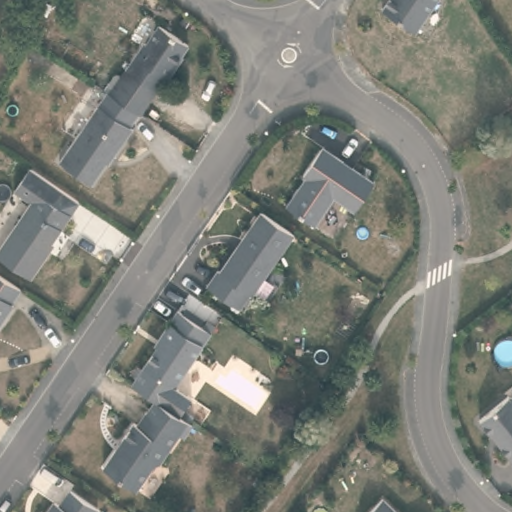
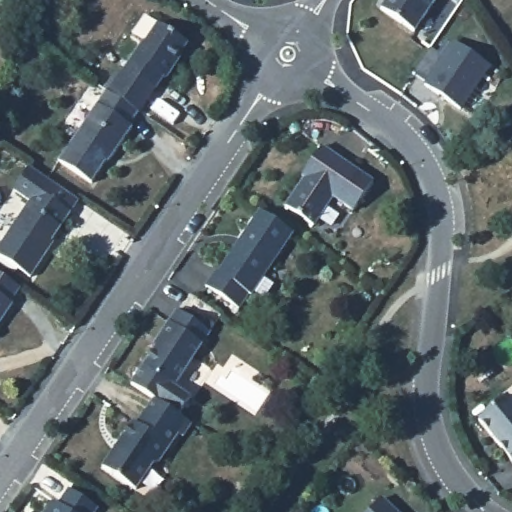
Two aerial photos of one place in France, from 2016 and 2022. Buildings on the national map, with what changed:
unchanged [(434,0),(415,30),(381,9),(387,0),(434,0)]
unchanged [(120,84),(126,75),(145,49),(146,50),(160,31),(189,51),(181,62),(183,63),(167,85),(165,84),(156,96),(143,87),(137,95),(120,84)]
new [(455,43),(491,67),(461,110),(426,86),(455,43)]
unchanged [(134,120),(125,134),(128,136),(108,165),(106,164),(87,190),(54,168),(102,98),(134,120)]
unchanged [(355,219),(334,205),(315,234),(287,214),(306,185),(303,184),(323,155),(344,169),(341,174),(350,179),(353,175),(374,190),(355,219)]
unchanged [(42,257),(44,258),(26,284),(0,267),(0,246),(33,198),(66,220),(42,257)]
unchanged [(252,303),(250,302),(240,317),(207,294),(217,278),(220,279),(261,219),(294,242),(252,303)]
unchanged [(11,309),(13,311),(0,329),(0,282),(20,295),(11,309)]
unchanged [(172,326),(169,324),(188,297),(221,320),(185,373),(201,384),(189,403),(142,371),(172,326)]
unchanged [(504,405),(504,406),(511,407),(512,408),(512,474),(474,428),(504,405)]
unchanged [(159,466),(154,467),(136,492),(103,469),(134,424),(137,427),(146,414),(179,437),(159,466)]
unchanged [(49,504),(54,507),(65,492),(92,510),(90,512),(43,512),(49,504)]
unchanged [(382,507),(388,512),(377,512),(382,507)]

